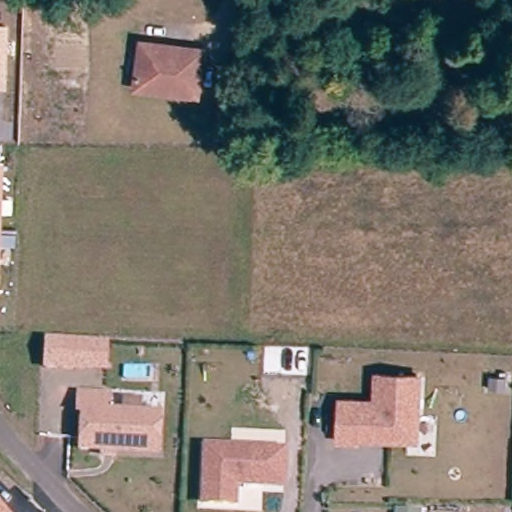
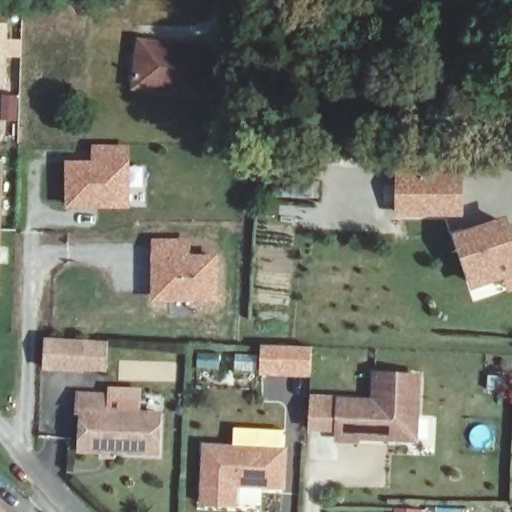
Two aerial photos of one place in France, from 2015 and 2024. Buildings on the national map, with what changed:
unchanged [(9,24),(7,90),(0,90),(0,24),(9,24)]
unchanged [(203,50),(197,96),(135,89),(141,42),(203,50)]
new [(93,162),(93,146),(131,147),(131,211),(67,210),(66,162),(93,162)]
unchanged [(9,164),(2,296),(0,296),(0,163),(9,164)]
new [(465,219),(397,217),(398,172),(466,174),(465,219)]
new [(512,280),(474,293),(455,237),(510,218),(512,225),(512,280)]
new [(192,241),(192,256),(220,256),(219,303),(151,304),(153,241),(192,241)]
unchanged [(113,343),(111,364),(87,362),(87,370),(51,368),(53,340),(113,343)]
new [(313,348),(312,379),(264,377),(265,346),(313,348)]
unchanged [(506,378),(505,390),(489,390),(490,377),(506,378)]
unchanged [(342,444),(342,406),(378,406),(378,378),(421,379),(420,442),(361,441),(361,445),(342,444)]
unchanged [(83,443),(84,413),(80,413),(80,395),(110,396),(110,412),(161,414),(160,453),(93,452),(83,451),(83,443)]
unchanged [(208,445),(288,448),(286,485),(239,483),(238,503),(206,502),(208,445)]
unchanged [(421,512),(397,512),(397,510),(422,511),(421,512)]

